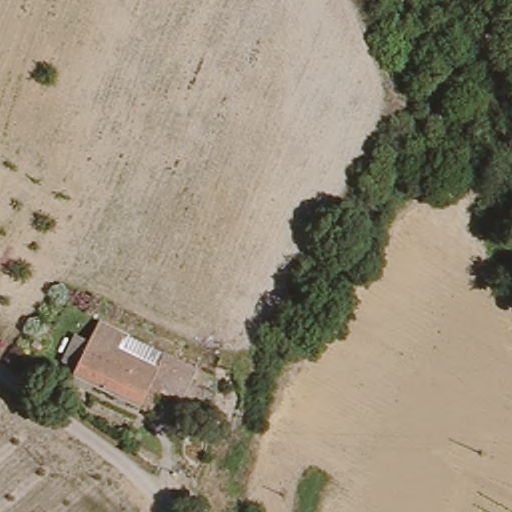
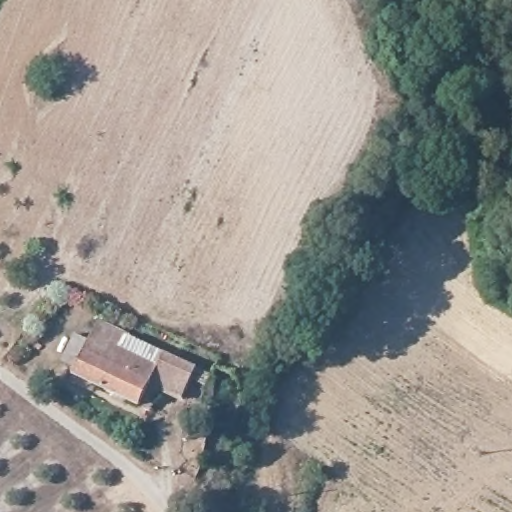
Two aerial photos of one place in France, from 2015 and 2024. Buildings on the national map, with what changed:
unchanged [(81,365),(64,354),(79,330),(94,340),(105,324),(211,386),(201,397),(190,390),(184,399),(163,387),(146,411),(78,370),(81,365)]

